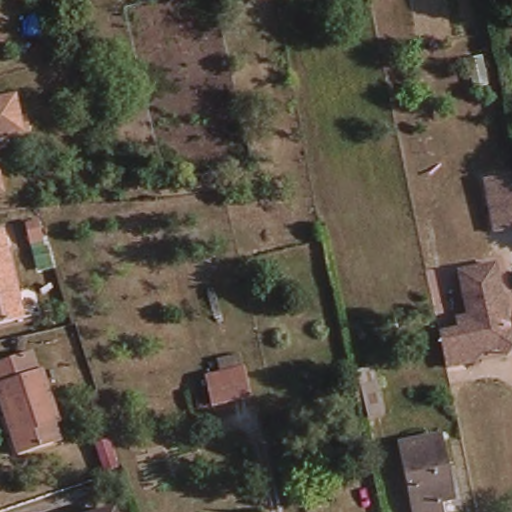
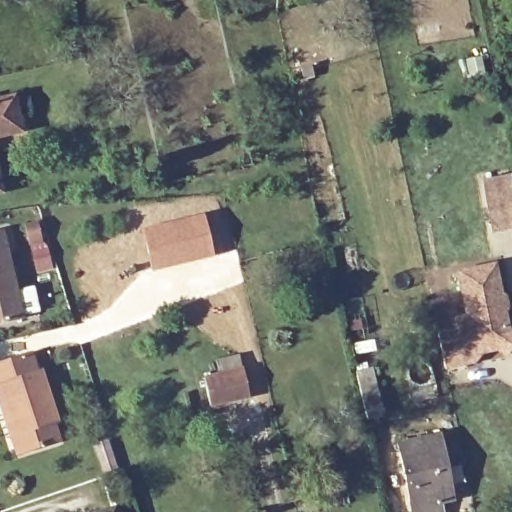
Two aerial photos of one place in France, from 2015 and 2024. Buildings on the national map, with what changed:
unchanged [(20,129),(0,134),(0,100),(14,98),(20,129)]
unchanged [(307,102),(313,128),(298,132),(292,105),(307,102)]
unchanged [(483,185),(481,178),(510,172),(511,180),(512,186),(512,225),(492,229),(483,185)]
new [(204,213),(215,255),(152,272),(141,228),(204,213)]
unchanged [(24,316),(0,322),(0,229),(1,229),(24,316)]
unchanged [(469,356),(470,363),(449,368),(442,333),(462,329),(460,319),(471,316),(462,271),(490,264),(498,263),(505,293),(509,297),(510,306),(508,310),(512,330),(512,349),(510,353),(501,348),(469,356)]
unchanged [(11,433),(15,432),(0,384),(0,360),(32,349),(38,365),(42,364),(60,419),(56,420),(61,439),(19,453),(11,433)]
unchanged [(216,373),(242,366),(249,392),(206,402),(201,377),(216,373)]
unchanged [(364,413),(354,370),(371,366),(380,409),(364,413)]
unchanged [(443,505),(445,512),(416,512),(402,447),(442,438),(445,450),(456,502),(443,505)]
unchanged [(118,512),(108,512),(117,509),(118,512)]

